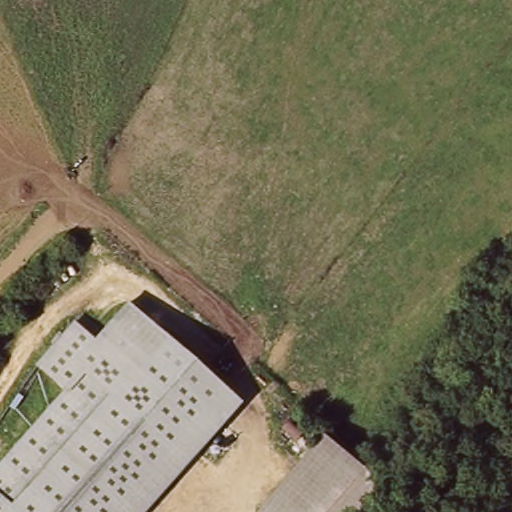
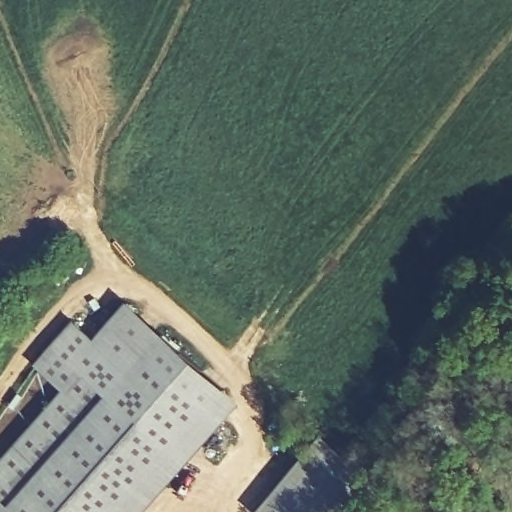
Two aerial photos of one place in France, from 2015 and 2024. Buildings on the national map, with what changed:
unchanged [(72,393),(44,366),(83,327),(102,345),(110,337),(137,309),(236,405),(208,435),(141,512),(0,512),(0,466),(31,435),(72,393)]
unchanged [(287,496),(337,443),(353,458),(383,488),(361,512),(272,512),(287,496)]

